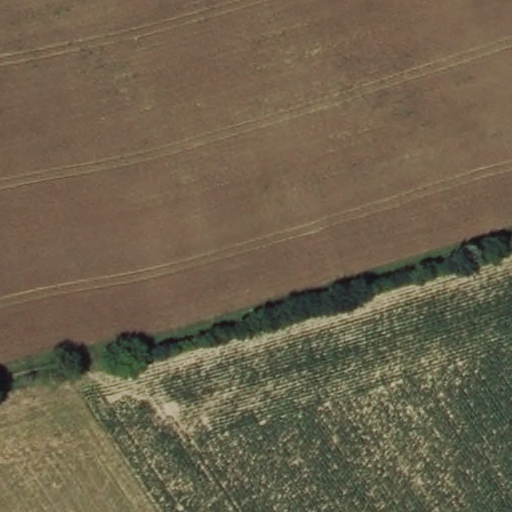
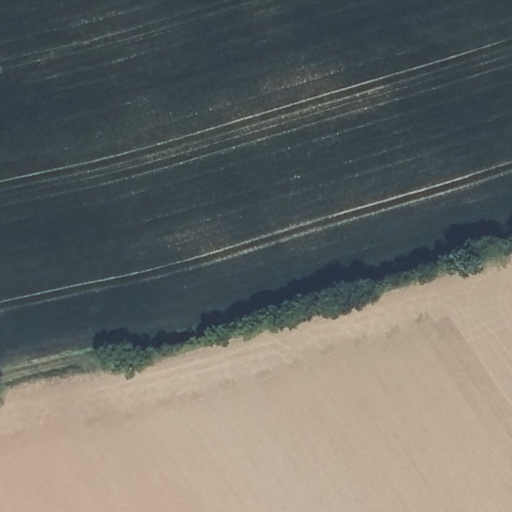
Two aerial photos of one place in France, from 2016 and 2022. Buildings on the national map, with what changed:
[]

